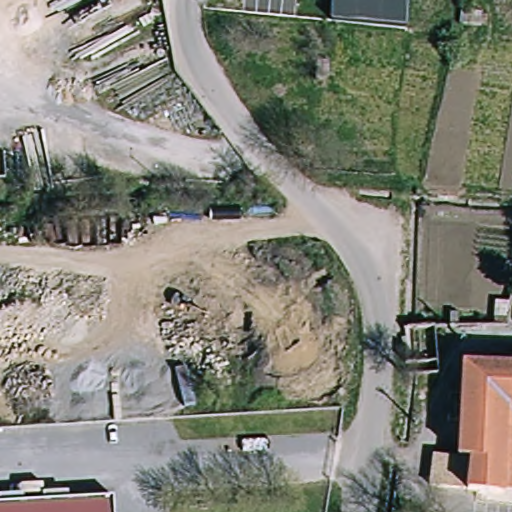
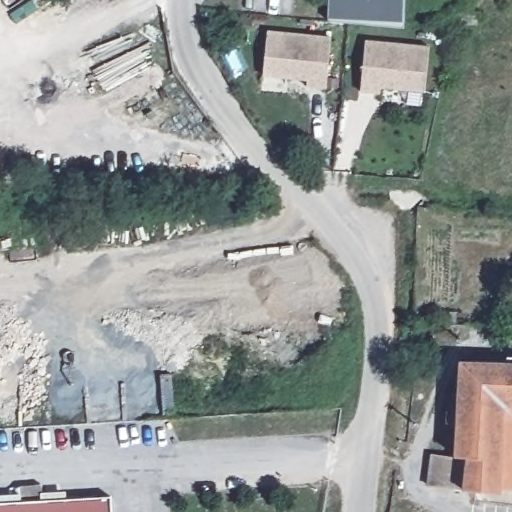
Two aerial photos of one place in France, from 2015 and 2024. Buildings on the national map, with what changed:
unchanged [(401,27),(328,22),(329,0),(403,0),(401,27)]
new [(330,36),(326,88),(306,86),(306,80),(263,76),(267,30),(330,36)]
new [(429,46),(423,92),(381,87),(379,95),(359,92),(365,40),(429,46)]
unchanged [(458,455),(464,358),(512,360),(512,489),(468,489),(469,455),(458,455)]
new [(426,485),(429,455),(455,457),(458,455),(469,455),(468,489),(426,485)]
unchanged [(110,493),(112,512),(0,512),(0,502),(110,493)]

